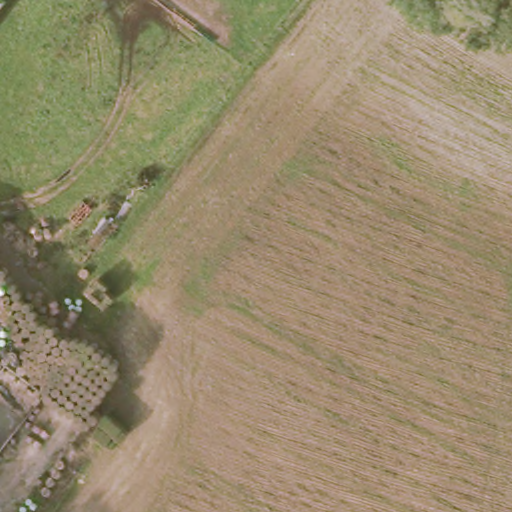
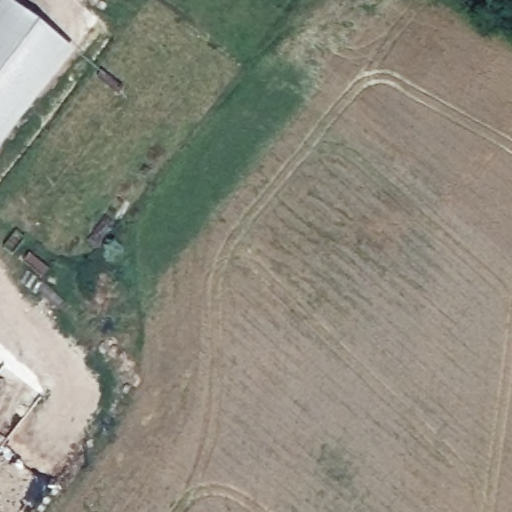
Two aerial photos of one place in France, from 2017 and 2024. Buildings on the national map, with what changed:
unchanged [(0,11),(0,0),(4,0),(7,2),(0,11)]
new [(0,151),(0,11),(7,2),(73,55),(0,151)]

